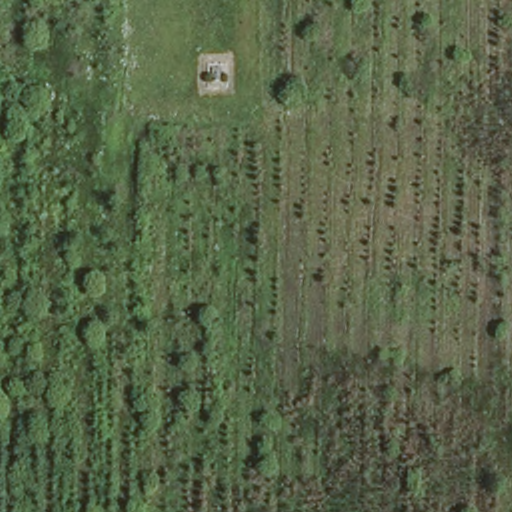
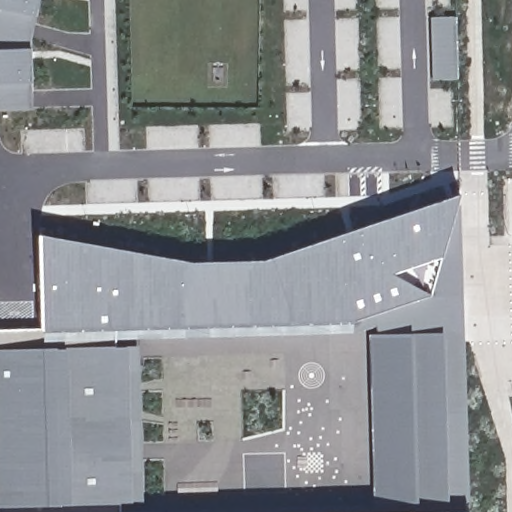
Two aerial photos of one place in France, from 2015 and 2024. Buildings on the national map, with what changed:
new [(40,0),(32,39),(35,106),(0,107),(0,0),(40,0)]
new [(430,17),(458,16),(459,79),(432,80),(430,17)]
unchanged [(227,59),(227,84),(210,83),(210,59),(227,59)]
new [(270,257),(466,189),(435,292),(358,317),(118,323),(122,512),(0,512),(0,325),(43,325),(40,230),(199,259),(270,257)]
new [(471,507),(406,509),(401,316),(427,315),(463,200),(471,507)]
new [(406,509),(285,512),(122,512),(118,323),(358,317),(435,292),(427,315),(401,316),(401,325),(135,332),(140,508),(406,501),(406,509)]
new [(402,334),(406,501),(373,502),(369,334),(402,334)]
new [(406,509),(471,507),(471,512),(285,512),(406,509)]

